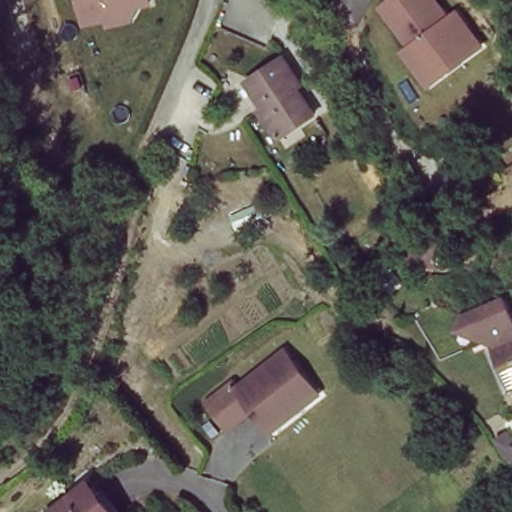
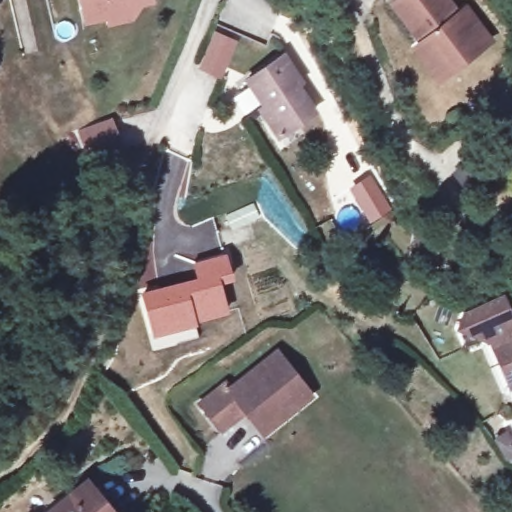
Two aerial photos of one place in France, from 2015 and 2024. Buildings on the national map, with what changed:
unchanged [(133,17),(99,25),(99,20),(81,23),(77,0),(139,0),(137,1),(133,17)]
unchanged [(467,0),(470,0),(497,41),(433,83),(406,46),(412,39),(385,2),(388,0),(449,0),(455,8),(467,0)]
unchanged [(281,126),(265,106),(267,104),(252,84),(280,61),(295,81),(292,84),(308,104),(281,126)]
new [(115,125),(120,155),(88,160),(83,131),(115,125)]
unchanged [(460,142),(475,161),(453,176),(439,158),(460,142)]
unchanged [(418,260),(423,247),(440,253),(435,266),(418,260)]
new [(195,277),(192,262),(227,252),(233,279),(222,283),(229,312),(196,323),(197,327),(152,341),(140,292),(195,277)]
unchanged [(490,347),(489,346),(478,351),(460,344),(467,326),(497,308),(512,331),(512,385),(490,347)]
unchanged [(265,413),(254,422),(243,408),(218,428),(197,402),(223,381),(227,386),(273,349),(308,392),(293,404),(271,422),(265,413)]
unchanged [(64,506),(82,491),(100,512),(50,512),(48,510),(59,500),(64,506)]

